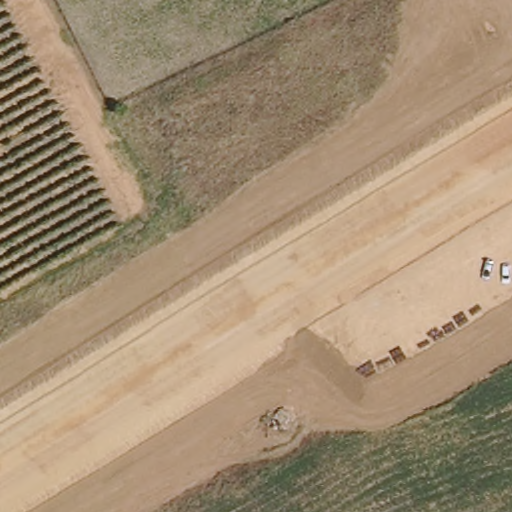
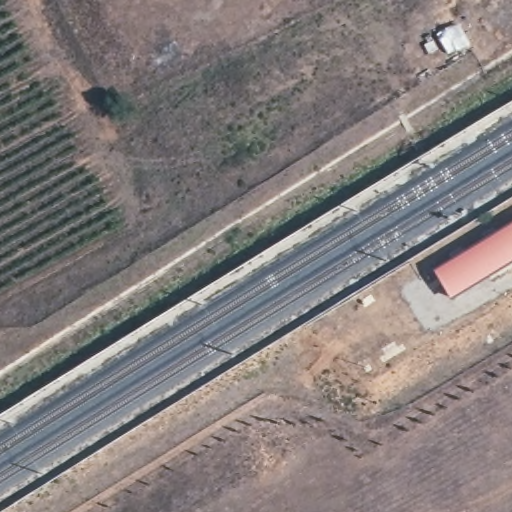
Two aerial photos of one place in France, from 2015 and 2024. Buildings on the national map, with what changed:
new [(449,301),(433,271),(512,224),(512,263),(449,301)]

